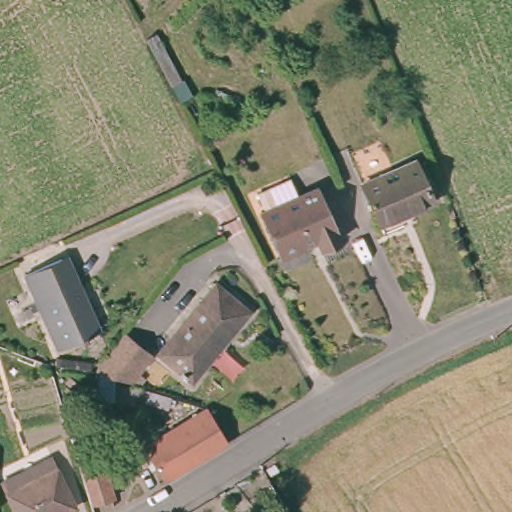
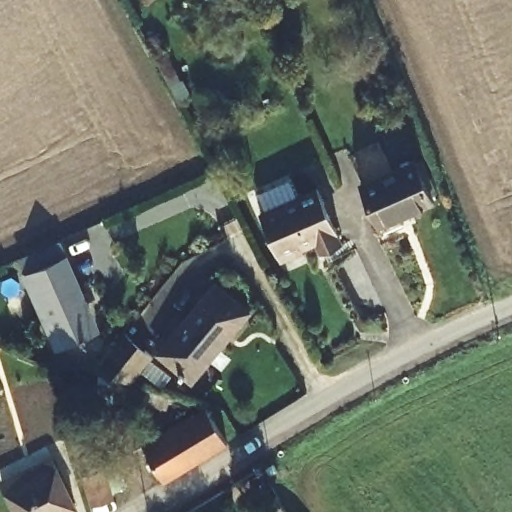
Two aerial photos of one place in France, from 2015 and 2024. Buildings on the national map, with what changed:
unchanged [(157,34),(182,81),(171,87),(171,86),(147,40),(157,34)]
unchanged [(415,161),(434,201),(410,211),(413,220),(384,233),(362,185),(415,161)]
unchanged [(290,180),(299,198),(317,190),(342,243),(322,252),(317,241),(280,256),(261,215),(266,212),(257,195),(290,180)]
unchanged [(48,245),(53,257),(30,267),(24,255),(48,245)]
unchanged [(65,254),(97,327),(61,343),(29,270),(65,254)]
unchanged [(215,278),(250,307),(192,378),(158,348),(215,278)]
unchanged [(124,329),(153,351),(132,379),(92,367),(124,329)]
unchanged [(197,402),(184,411),(174,406),(145,399),(147,393),(140,391),(138,400),(99,394),(104,376),(153,388),(197,402)]
unchanged [(228,438),(164,477),(144,441),(207,404),(228,438)]
unchanged [(75,507),(65,512),(16,512),(1,483),(50,457),(75,507)]
unchanged [(105,465),(114,497),(81,506),(72,475),(105,465)]
unchanged [(280,505),(285,510),(287,512),(272,512),(280,505)]

